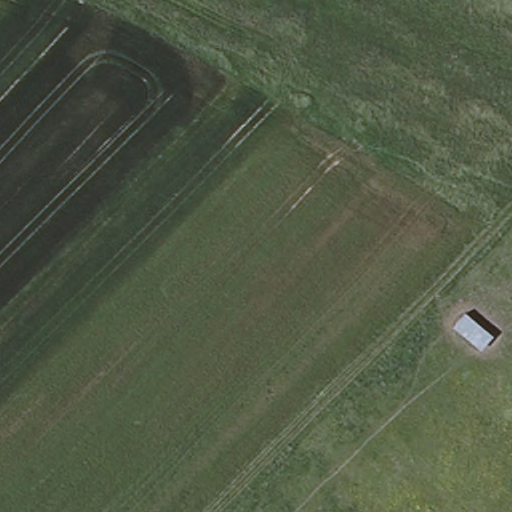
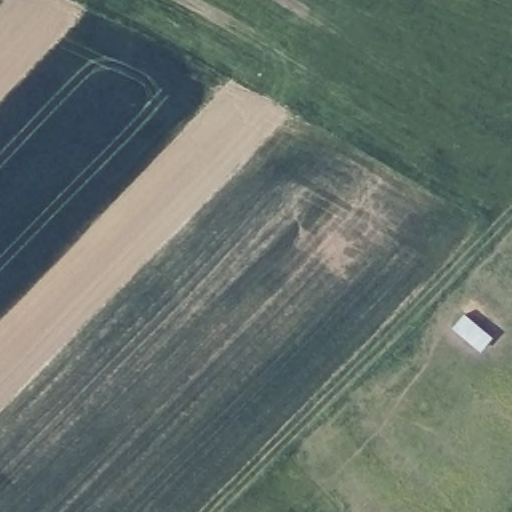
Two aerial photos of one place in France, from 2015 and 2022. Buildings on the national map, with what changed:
unchanged [(474,347),(451,335),(460,313),(485,330),(474,347)]

